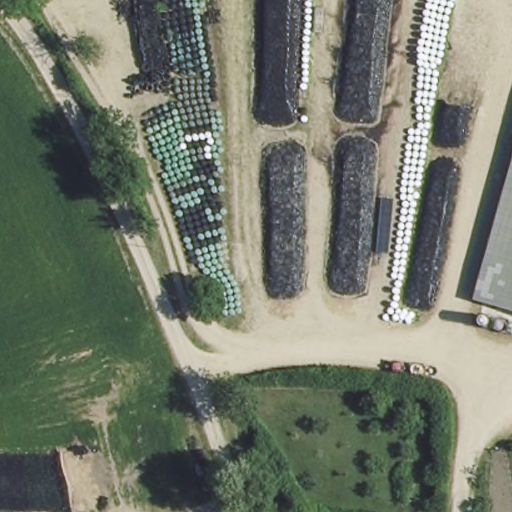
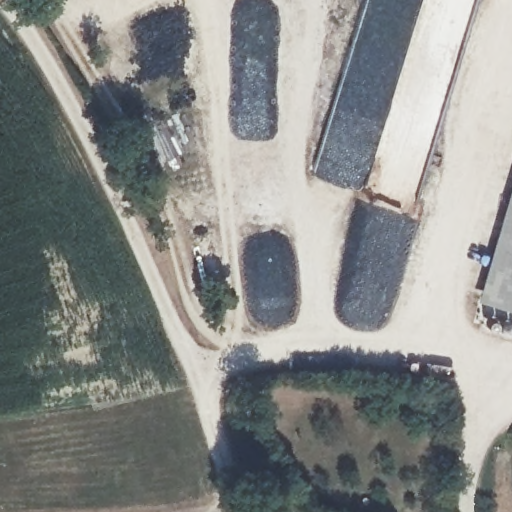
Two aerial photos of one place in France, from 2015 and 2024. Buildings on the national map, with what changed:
unchanged [(512,187),(512,309),(480,300),(512,187)]

